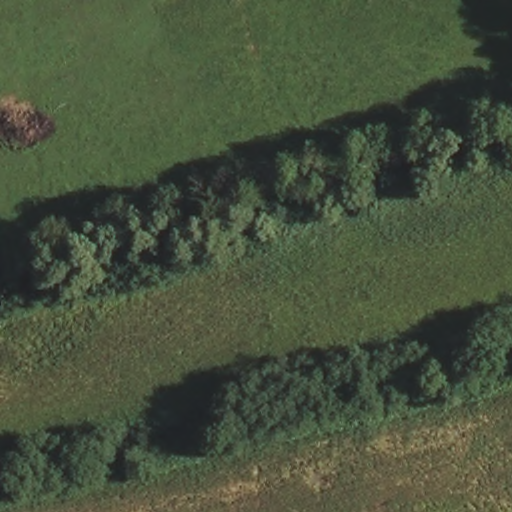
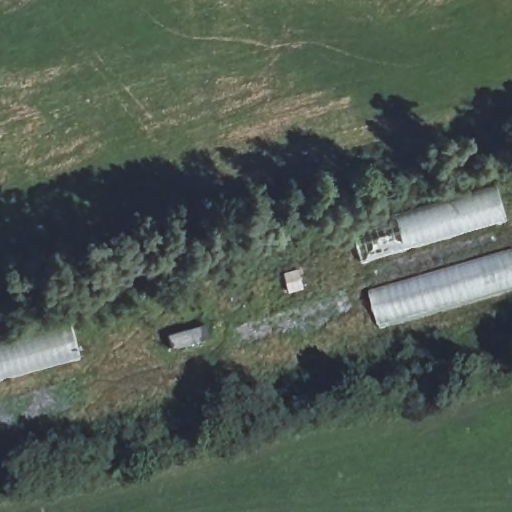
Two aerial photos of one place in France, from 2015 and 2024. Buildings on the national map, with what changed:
new [(361,264),(349,225),(496,183),(507,222),(361,264)]
new [(369,291),(512,249),(512,289),(380,328),(369,291)]
new [(0,380),(0,341),(71,321),(81,358),(0,380)]

